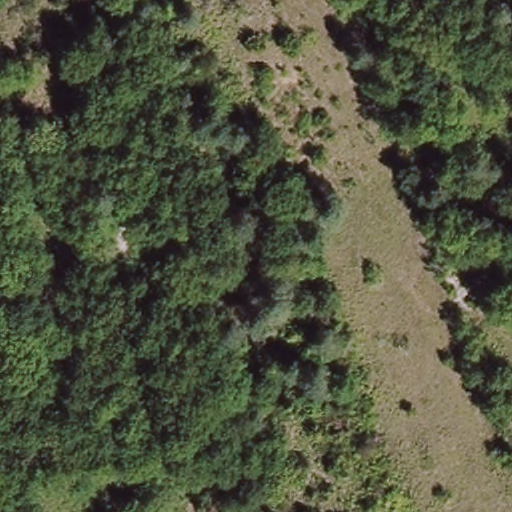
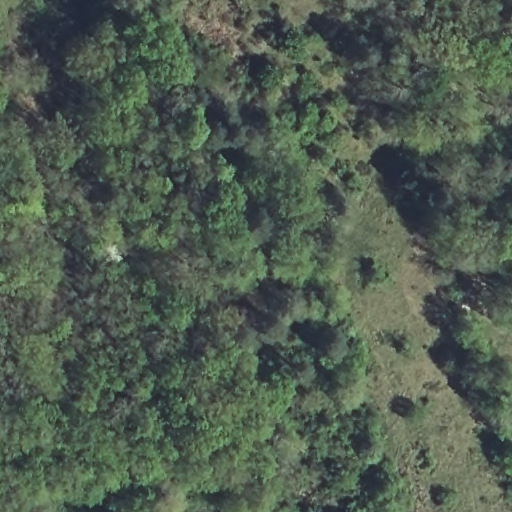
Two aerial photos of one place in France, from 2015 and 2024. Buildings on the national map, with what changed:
[]

